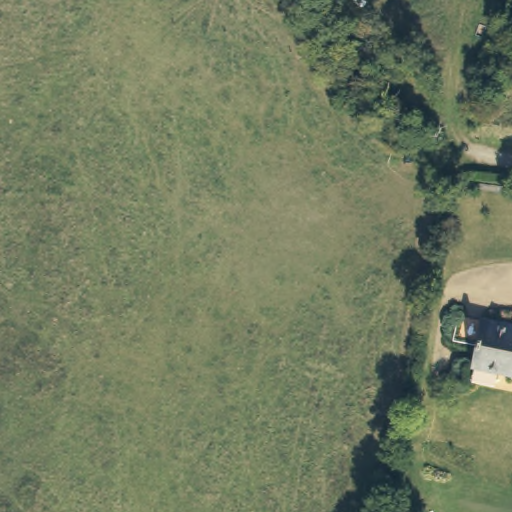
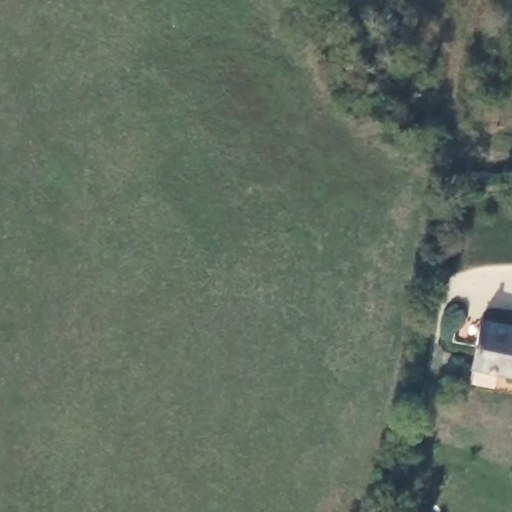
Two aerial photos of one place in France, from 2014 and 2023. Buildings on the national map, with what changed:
unchanged [(480,320),(512,326),(512,376),(472,368),(480,320)]

